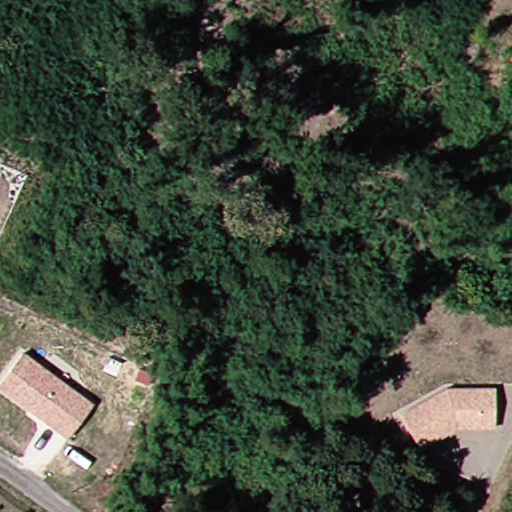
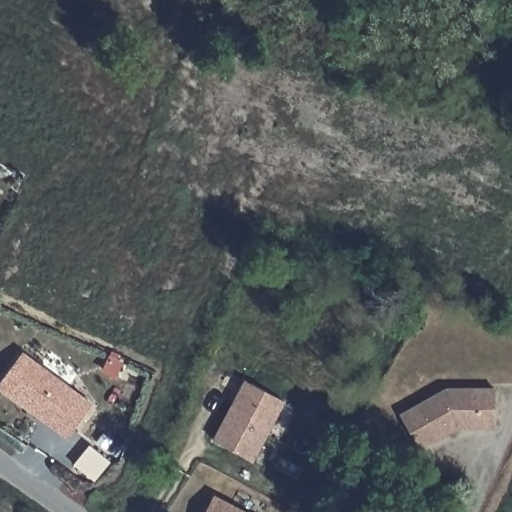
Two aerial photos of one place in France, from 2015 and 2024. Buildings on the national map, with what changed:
unchanged [(68,441),(0,392),(0,382),(23,351),(94,403),(68,441)]
new [(246,381),(284,401),(252,461),(214,441),(246,381)]
unchanged [(413,438),(400,417),(447,388),(497,390),(495,428),(457,427),(428,444),(420,449),(413,438)]
new [(205,512),(214,495),(248,512),(205,512)]

